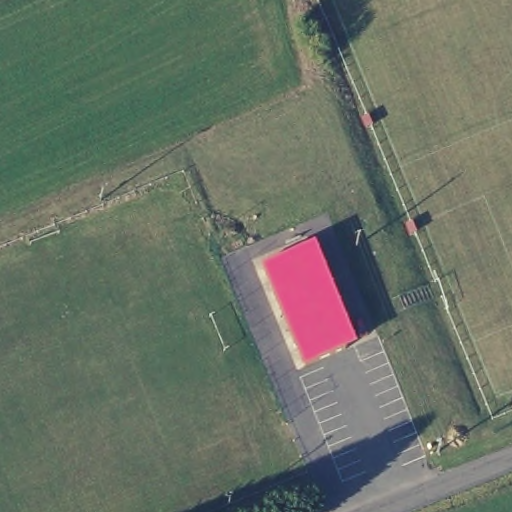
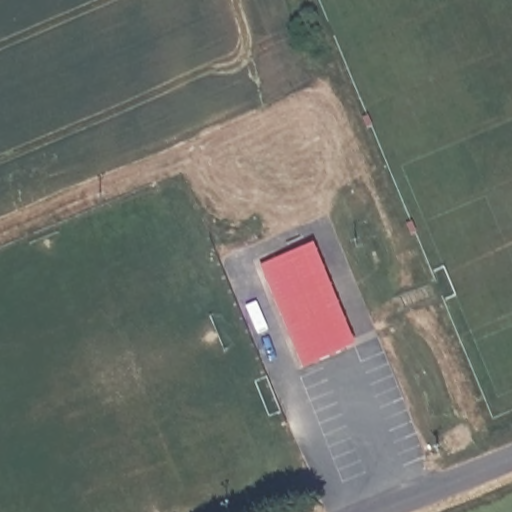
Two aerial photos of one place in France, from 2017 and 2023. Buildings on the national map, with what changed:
unchanged [(310,244),(346,331),(296,353),(257,264),(310,244)]

